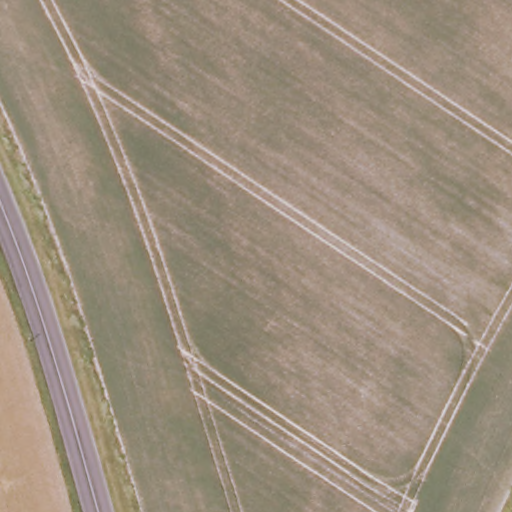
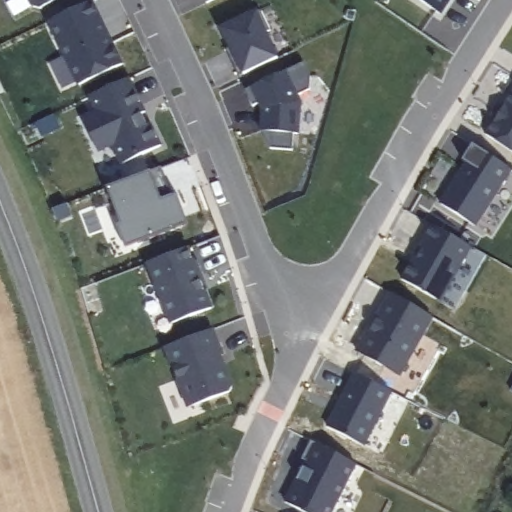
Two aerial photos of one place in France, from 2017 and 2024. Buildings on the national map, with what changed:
new [(43,8),(35,6),(32,0),(56,0),(43,8)]
new [(208,2),(207,0),(213,0),(208,2)]
new [(421,0),(451,0),(442,14),(421,0)]
new [(93,1),(106,30),(105,30),(110,42),(112,41),(123,64),(80,85),(50,21),(93,1)]
new [(262,10),(272,30),(267,32),(279,57),(241,76),(232,58),(236,56),(223,28),(262,10)]
new [(228,49),(232,46),(236,56),(232,58),(228,49)]
new [(305,62),(312,77),(311,90),(298,96),(301,102),(298,135),(293,134),(291,150),(271,149),(262,131),(264,110),(261,103),(254,106),(247,90),(305,62)]
new [(98,112),(91,96),(129,77),(146,111),(142,114),(148,125),(151,123),(161,145),(123,163),(113,144),(99,151),(83,119),(98,112)]
new [(494,114),(499,107),(506,106),(512,96),(512,150),(488,135),(496,121),(494,114)]
new [(454,186),(469,162),(464,160),(474,145),(512,169),(476,225),(442,204),(454,186)]
new [(162,166),(173,196),(178,194),(183,207),(178,209),(184,225),(128,247),(120,226),(123,225),(108,187),(162,166)]
new [(412,270),(408,267),(428,231),(441,239),(444,232),(469,246),(441,301),(405,281),(412,270)]
new [(189,247),(194,262),(199,261),(206,279),(201,281),(212,308),(173,323),(149,262),(189,247)]
new [(370,328),(372,330),(393,293),(433,315),(401,373),(358,349),(370,328)]
new [(214,329),(224,355),(218,357),(221,364),(224,363),(233,387),(231,392),(191,407),(167,347),(214,329)]
new [(392,391),(364,445),(329,427),(356,373),(392,391)]
new [(356,465),(333,512),(305,512),(284,502),(314,443),(356,465)]

